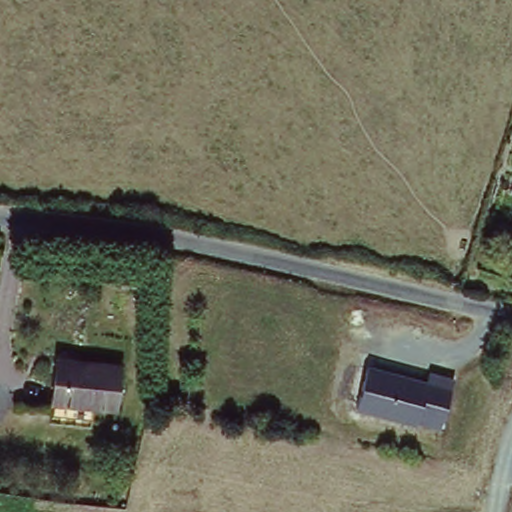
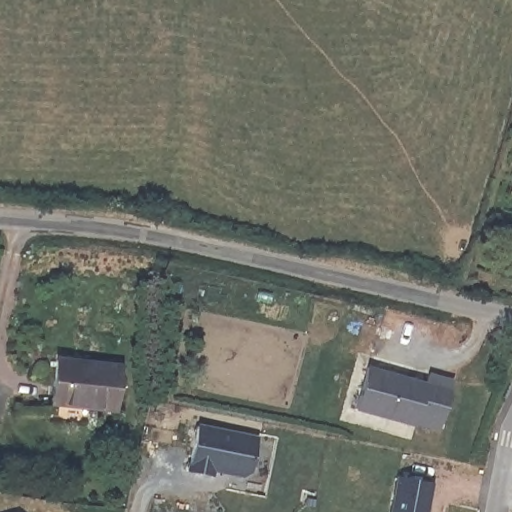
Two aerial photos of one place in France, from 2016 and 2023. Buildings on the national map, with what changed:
unchanged [(116,362),(115,405),(50,402),(50,359),(116,362)]
unchanged [(363,366),(422,379),(424,375),(451,382),(440,428),(355,408),(363,366)]
new [(254,467),(249,471),(224,466),(225,463),(217,461),(215,475),(191,471),(199,425),(260,436),(254,467)]
new [(399,478),(434,484),(429,512),(393,512),(399,478)]

